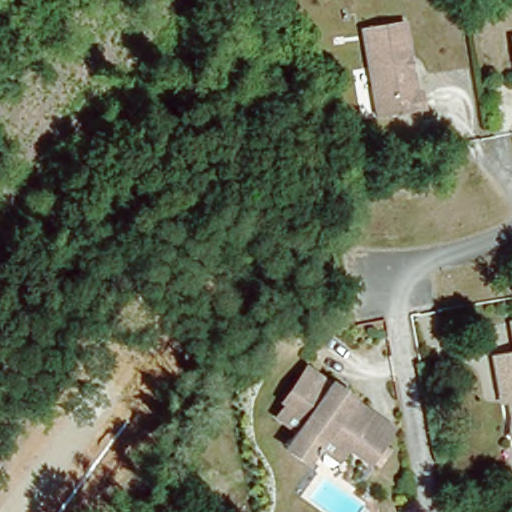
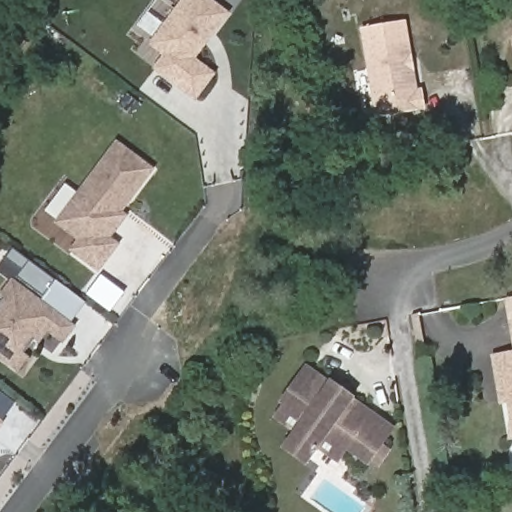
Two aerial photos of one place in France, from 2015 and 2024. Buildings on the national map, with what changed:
new [(153,70),(161,57),(146,45),(180,0),(212,0),(230,13),(195,59),(215,74),(195,101),(153,70)]
unchanged [(360,28),(400,20),(409,56),(405,57),(407,67),(411,66),(416,89),(422,88),(426,105),(378,115),(368,68),(360,28)]
unchanged [(512,47),(511,42),(512,42),(512,47)]
new [(69,251),(77,240),(55,223),(116,140),(155,169),(122,212),(127,216),(111,237),(120,244),(97,273),(69,251)]
new [(62,345),(46,333),(17,372),(0,359),(0,294),(12,278),(76,326),(62,345)]
unchanged [(512,327),(512,333),(510,327),(512,327)]
unchanged [(496,361),(512,358),(512,424),(505,398),(496,361)]
unchanged [(316,442),(307,452),(289,437),(298,424),(281,411),(288,403),(284,398),(310,366),(384,426),(375,438),(385,447),(371,464),(361,457),(356,461),(338,446),(331,455),(316,442)]
new [(0,430),(0,419),(5,423),(0,430)]

